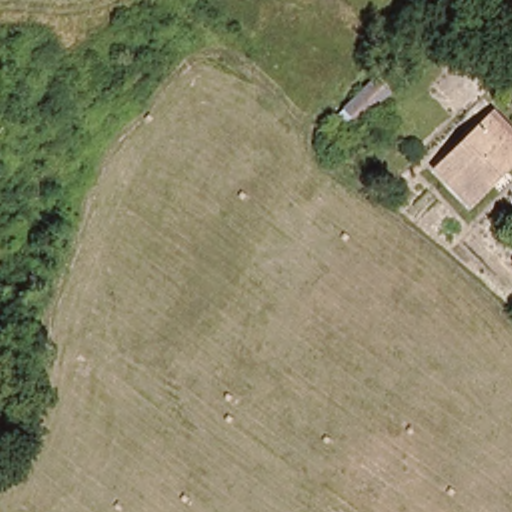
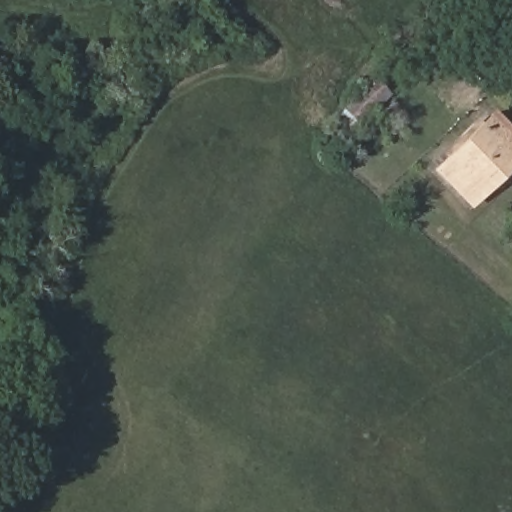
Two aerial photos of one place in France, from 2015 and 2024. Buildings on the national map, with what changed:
unchanged [(380,84),(387,92),(356,119),(349,111),(380,84)]
unchanged [(435,175),(480,130),(494,115),(505,126),(512,133),(512,160),(465,205),(435,175)]

